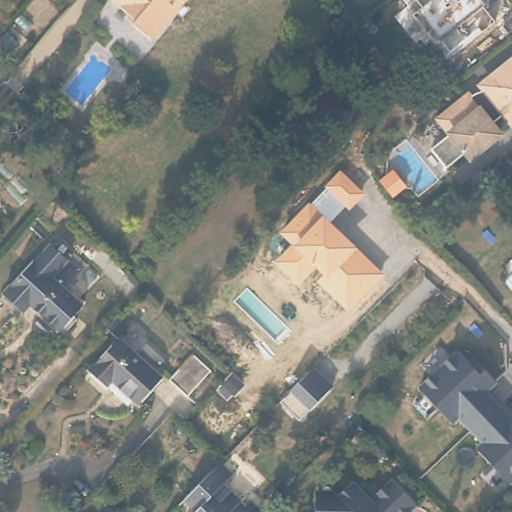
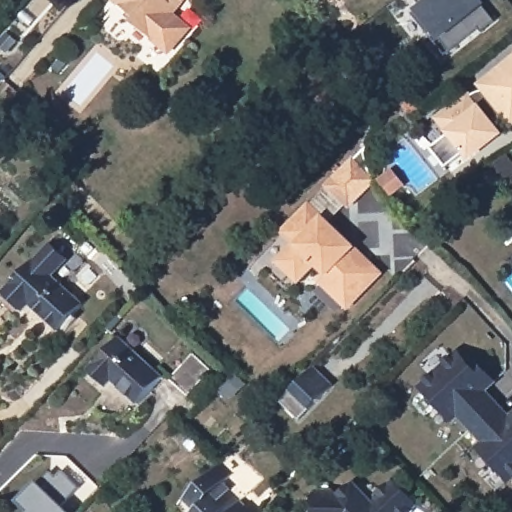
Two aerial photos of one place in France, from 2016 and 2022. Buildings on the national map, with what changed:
unchanged [(130,30),(134,25),(110,5),(114,0),(188,0),(149,46),(130,30)]
unchanged [(484,10),(495,21),(486,31),(482,26),(452,51),(443,43),(432,30),(429,32),(414,15),(418,12),(417,10),(423,4),(419,0),(483,0),(488,6),(484,10)]
unchanged [(471,154),(449,172),(434,152),(453,136),(442,122),(472,99),(483,114),(496,104),(490,95),(485,90),(512,68),(512,121),(508,116),(495,126),(504,136),(483,153),(475,160),(471,154)]
unchanged [(358,247),(384,274),(349,310),(318,283),(324,273),(315,265),(300,282),(278,262),(294,244),(283,232),(310,202),(324,215),(358,247)]
unchanged [(49,277),(79,303),(70,313),(75,318),(61,334),(28,306),(20,315),(0,298),(31,262),(33,263),(48,245),(64,259),(49,277)]
unchanged [(155,384),(133,408),(106,383),(96,393),(79,376),(110,342),(155,384)]
unchanged [(508,477),(475,443),(480,438),(456,412),(451,417),(418,382),(454,348),(465,360),(469,355),(479,366),(480,365),(492,378),(482,387),(507,413),(512,408),(512,473),(508,477)]
unchanged [(206,372),(185,400),(164,385),(185,356),(206,372)]
unchanged [(292,389),(315,365),(335,384),(301,418),(282,399),(292,389)]
unchanged [(199,509),(187,496),(221,461),(234,473),(224,483),(245,505),(250,501),(256,507),(261,512),(195,512),(199,509)]
new [(27,512),(18,502),(36,481),(48,472),(54,477),(60,471),(78,487),(61,503),(69,512),(27,512)]
unchanged [(322,496),(341,496),(355,483),(372,501),(395,480),(418,504),(409,512),(321,512),(322,496)]

